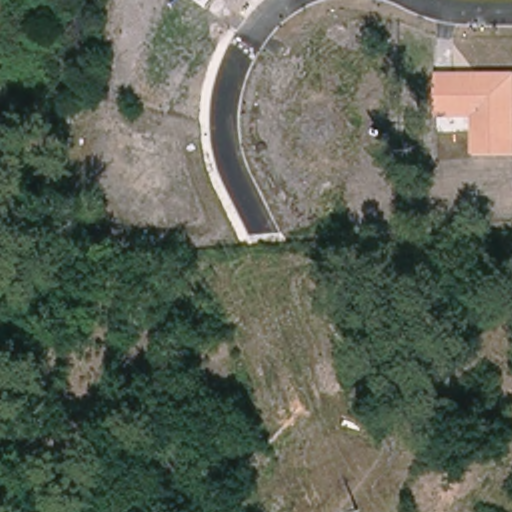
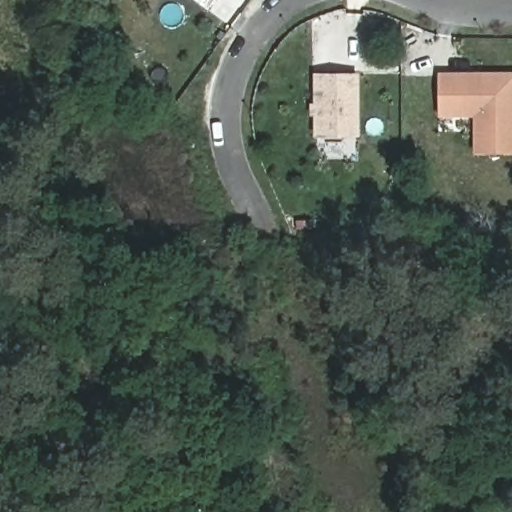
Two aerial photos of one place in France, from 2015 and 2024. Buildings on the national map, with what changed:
new [(309,117),(308,104),(314,104),(314,73),(359,73),(360,137),(314,138),(314,117),(309,117)]
unchanged [(477,154),(475,117),(435,118),(436,73),(512,73),(512,154),(477,154)]

